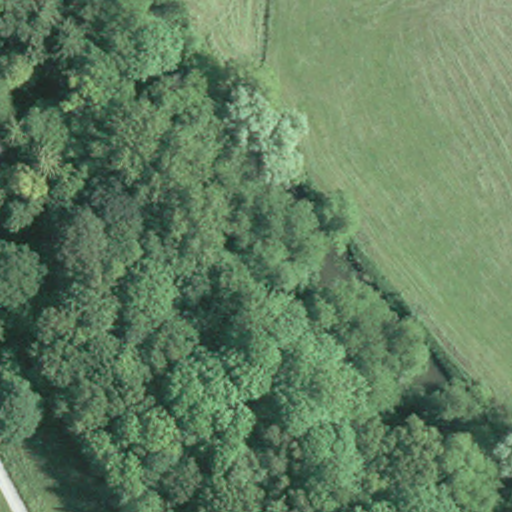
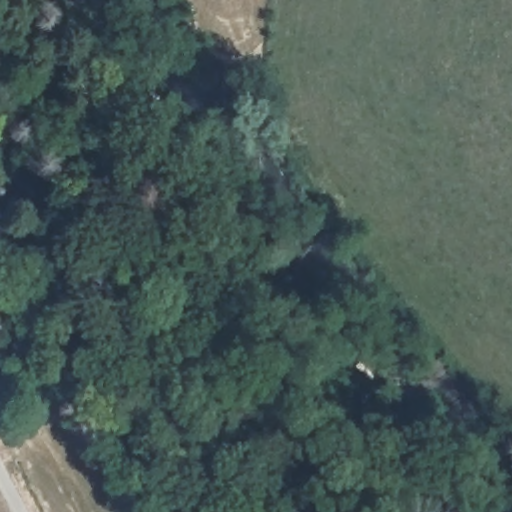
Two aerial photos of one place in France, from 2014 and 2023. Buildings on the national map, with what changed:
[]

